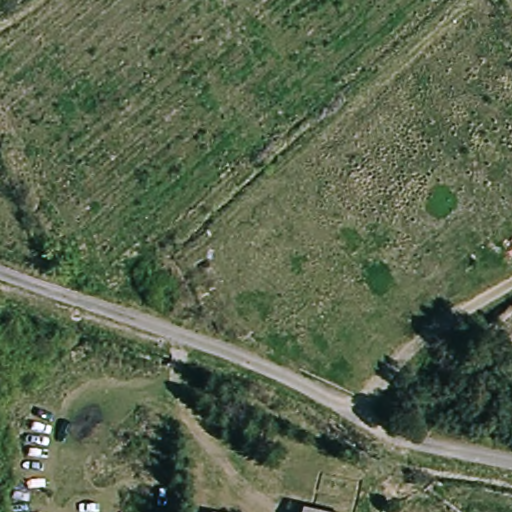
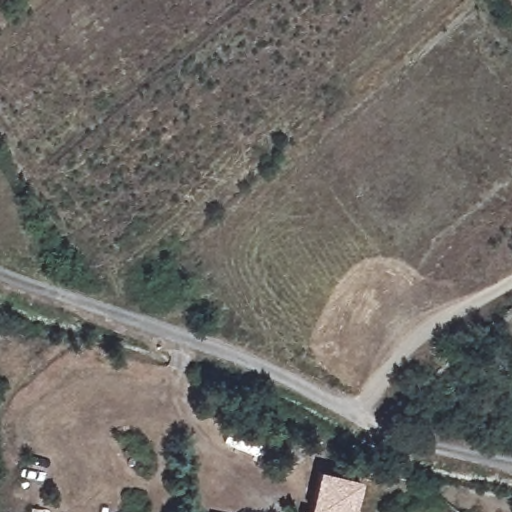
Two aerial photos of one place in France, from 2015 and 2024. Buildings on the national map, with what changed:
new [(362,480),(355,512),(309,512),(320,471),(362,480)]

